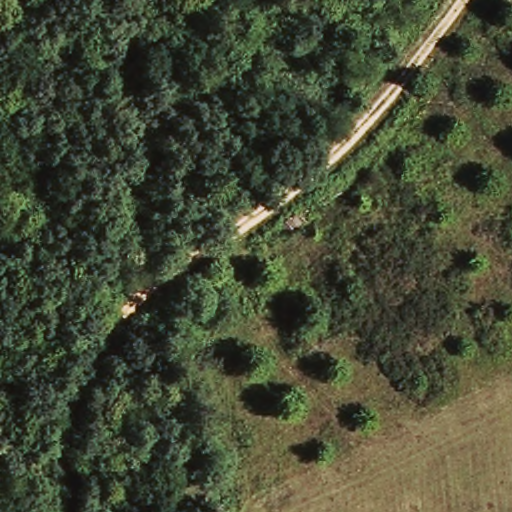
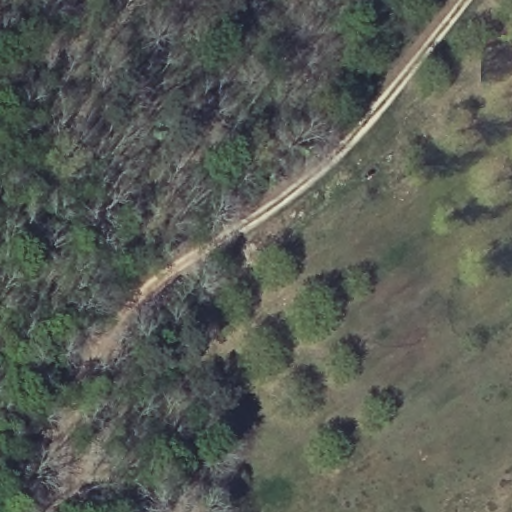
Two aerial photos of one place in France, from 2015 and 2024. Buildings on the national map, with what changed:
[]

